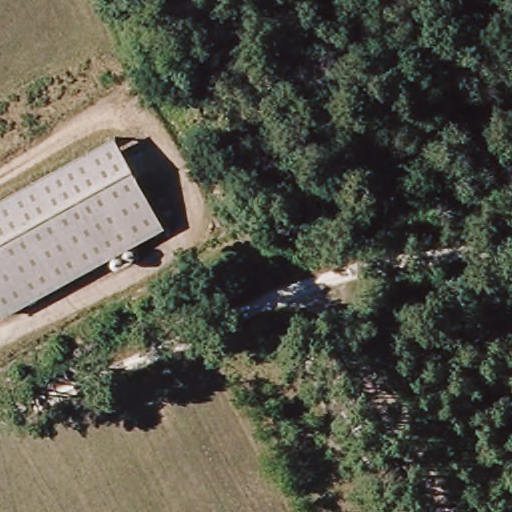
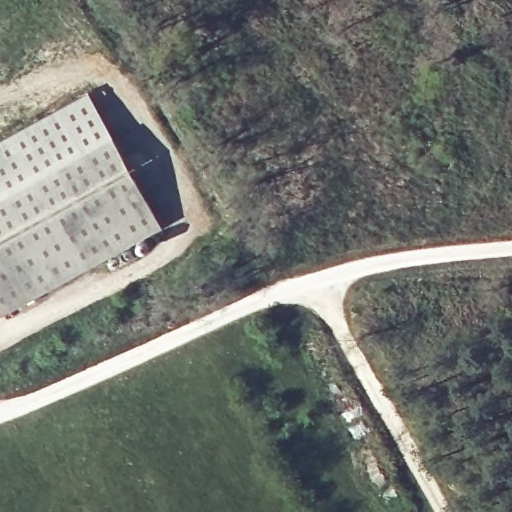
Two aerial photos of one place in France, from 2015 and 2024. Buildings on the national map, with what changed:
new [(0,140),(90,91),(114,136),(0,200),(0,140)]
unchanged [(163,226),(3,316),(0,311),(0,200),(114,136),(163,226)]

